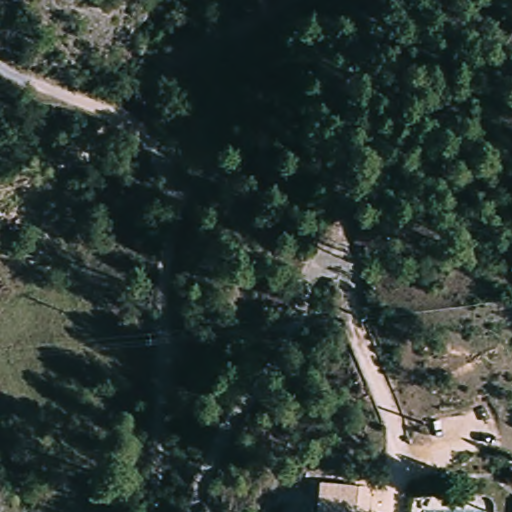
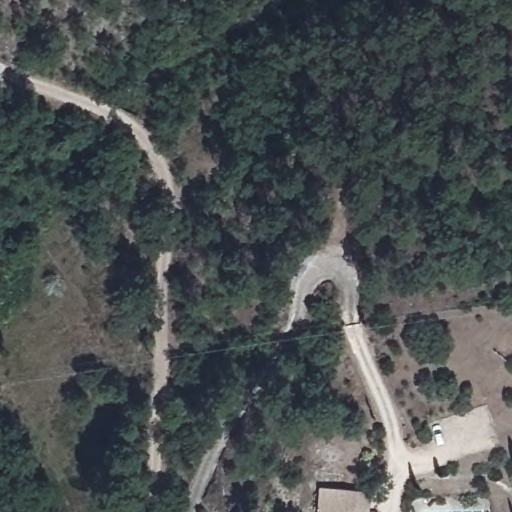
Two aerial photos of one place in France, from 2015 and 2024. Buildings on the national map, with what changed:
unchanged [(342,476),(369,481),(366,512),(336,512),(342,476)]

